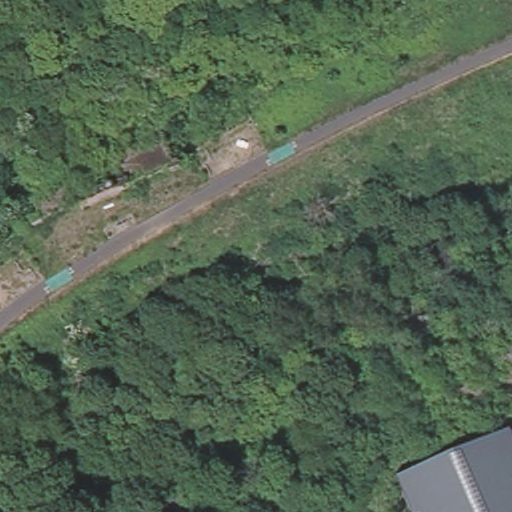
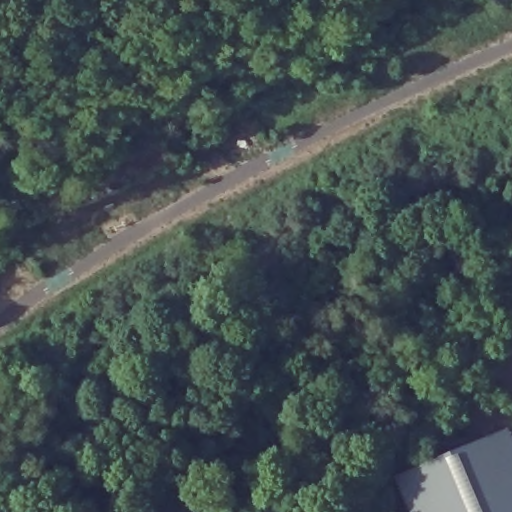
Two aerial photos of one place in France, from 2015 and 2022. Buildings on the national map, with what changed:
unchanged [(512,433),(512,486),(447,510),(442,512),(407,512),(392,475),(508,424),(512,433)]
unchanged [(512,486),(512,501),(483,512),(448,512),(447,510),(512,486)]
unchanged [(512,512),(483,512),(512,501),(512,512)]
unchanged [(448,512),(442,512),(447,510),(448,512)]

